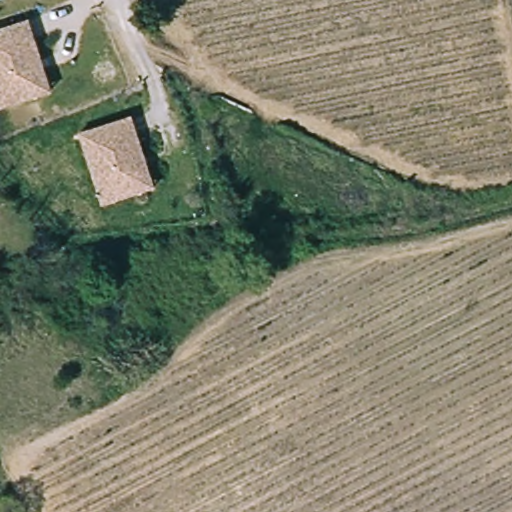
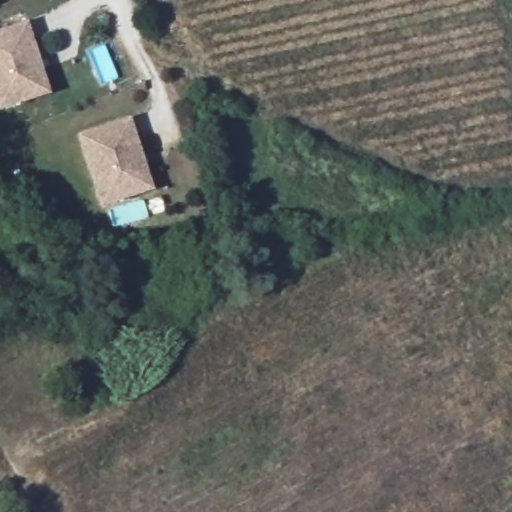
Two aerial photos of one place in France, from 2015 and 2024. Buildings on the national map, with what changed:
unchanged [(37,97),(0,110),(0,31),(22,23),(31,48),(46,94),(37,97)]
unchanged [(140,190),(100,203),(76,132),(126,116),(135,141),(150,187),(140,190)]

